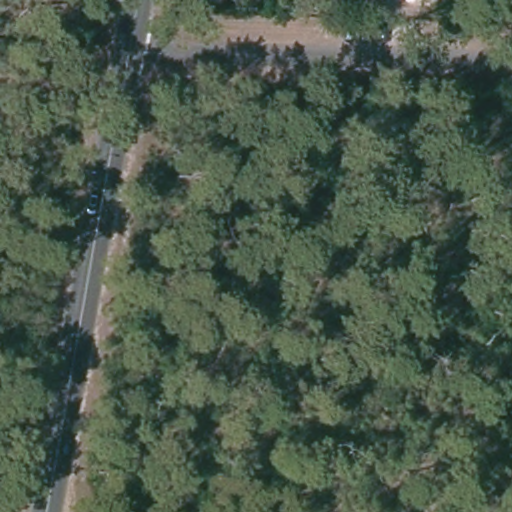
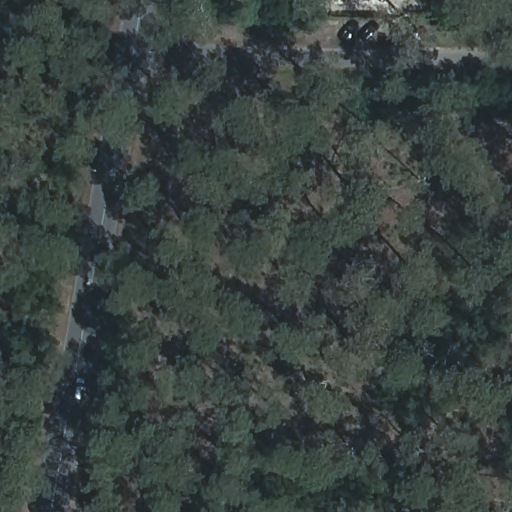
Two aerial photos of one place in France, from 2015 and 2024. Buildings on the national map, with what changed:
[]

